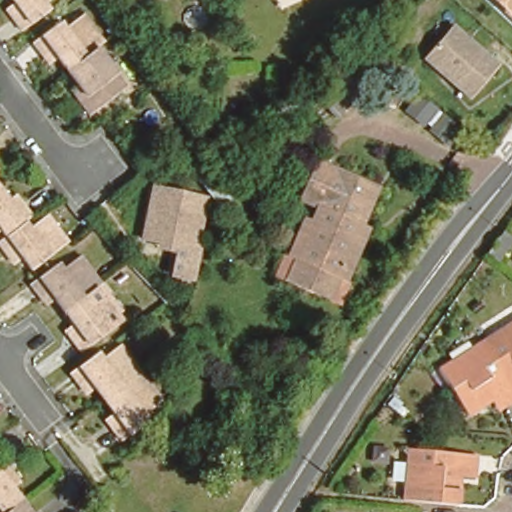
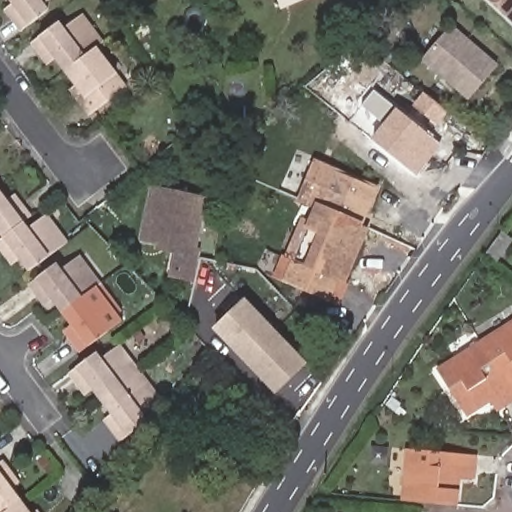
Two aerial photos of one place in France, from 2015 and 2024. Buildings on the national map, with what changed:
unchanged [(38,0),(42,6),(16,25),(6,12),(0,4),(5,0),(38,0)]
unchanged [(512,0),(512,23),(486,0),(512,0)]
unchanged [(41,50),(31,37),(57,19),(62,25),(81,10),(102,37),(96,42),(65,65),(55,53),(46,59),(41,50)]
unchanged [(417,58),(450,20),(498,64),(465,100),(417,58)]
unchanged [(75,79),(65,65),(96,42),(125,81),(89,109),(78,95),(69,84),(75,79)]
new [(371,46),(385,61),(330,112),(316,97),(371,46)]
unchanged [(397,110),(415,90),(456,121),(440,144),(397,110)]
new [(437,150),(412,180),(370,145),(395,115),(437,150)]
unchanged [(166,280),(170,255),(152,252),(154,241),(138,240),(148,181),(202,192),(190,175),(210,164),(237,194),(215,210),(207,200),(191,283),(166,280)]
unchanged [(345,288),(298,270),(320,218),(302,210),(317,172),(381,197),(366,236),(345,288)]
unchanged [(15,196),(20,205),(27,215),(29,217),(22,223),(3,236),(1,232),(0,231),(0,194),(5,202),(15,196)]
unchanged [(5,255),(0,247),(0,239),(3,236),(22,223),(27,230),(46,215),(66,244),(60,247),(29,270),(20,257),(11,263),(5,255)]
unchanged [(36,295),(26,282),(52,263),(57,270),(77,255),(97,283),(91,288),(59,310),(50,298),(41,303),(36,295)]
unchanged [(338,308),(291,289),(298,270),(345,288),(338,308)]
unchanged [(68,323),(59,310),(91,288),(97,283),(117,311),(97,325),(102,332),(76,350),(66,337),(60,330),(68,323)]
new [(245,298),(308,364),(292,380),(276,395),(213,330),(229,314),(245,298)]
unchanged [(479,345),(512,328),(512,400),(511,400),(479,345)]
unchanged [(79,385),(70,372),(96,353),(101,360),(121,345),(141,373),(135,377),(103,400),(94,387),(85,393),(79,385)]
unchanged [(491,393),(484,396),(487,402),(464,417),(436,370),(479,345),(511,400),(499,407),(491,393)]
unchanged [(112,413),(103,400),(135,377),(141,373),(161,401),(141,415),(145,422),(119,440),(110,427),(104,420),(112,413)]
unchanged [(453,510),(442,509),(430,507),(419,506),(408,505),(403,505),(407,455),(470,460),(470,476),(452,475),(453,483),(458,483),(457,510),(453,510)]
unchanged [(4,460),(13,473),(19,481),(11,488),(20,501),(5,512),(0,512),(0,463),(4,460)]
unchanged [(20,501),(28,512),(5,512),(20,501)]
unchanged [(36,510),(38,512),(34,512),(36,510)]

